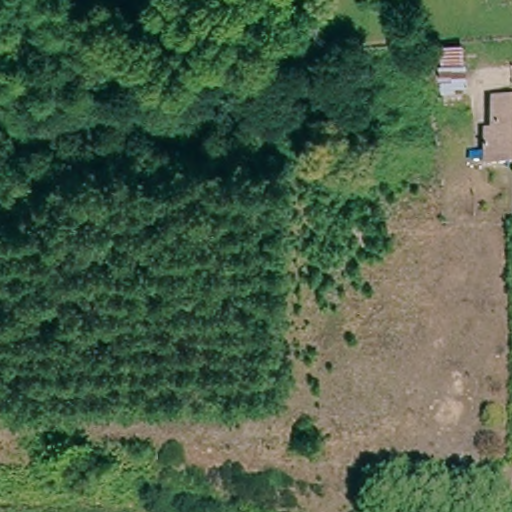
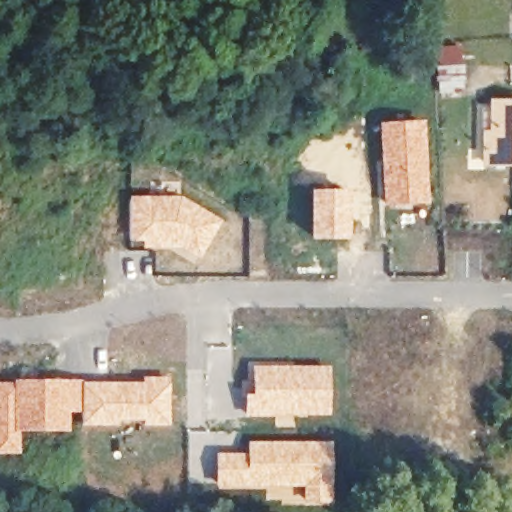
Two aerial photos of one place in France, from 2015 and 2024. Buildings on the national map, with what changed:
new [(462,45),(465,91),(437,95),(434,48),(462,45)]
unchanged [(478,140),(495,140),(495,103),(512,102),(512,167),(479,164),(478,140)]
new [(425,119),(429,204),(382,207),(378,122),(425,119)]
new [(309,189),(350,190),(349,239),(309,239),(309,189)]
new [(129,195),(181,195),(223,220),(199,258),(187,251),(179,249),(129,244),(129,195)]
new [(250,393),(251,364),(330,365),(330,415),(245,416),(244,393),(250,393)]
new [(81,413),(81,379),(142,381),(142,376),(170,377),(170,426),(142,425),(142,423),(81,425),(81,413)]
new [(30,379),(81,379),(81,413),(69,413),(69,432),(20,432),(20,454),(0,454),(0,381),(30,379)]
new [(214,452),(246,452),(246,440),(333,440),(334,504),(300,504),(299,490),(294,490),(293,501),(265,500),(265,488),(214,489),(214,452)]
unchanged [(43,488),(0,486),(0,460),(46,461),(43,488)]

